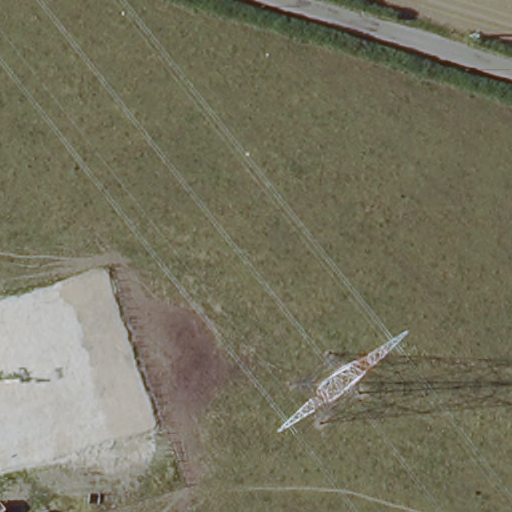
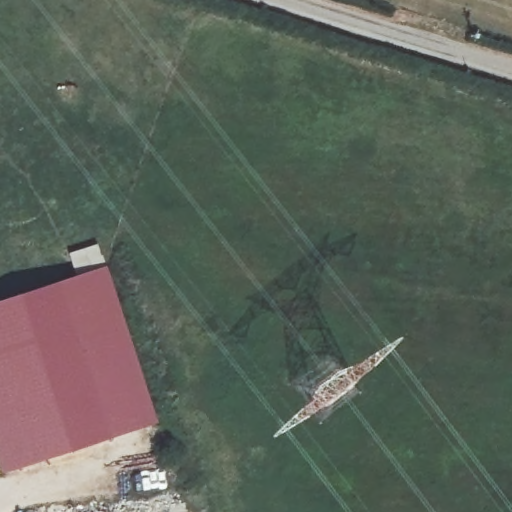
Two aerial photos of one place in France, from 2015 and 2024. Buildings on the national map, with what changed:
new [(154,425),(0,474),(0,302),(103,266),(154,425)]

